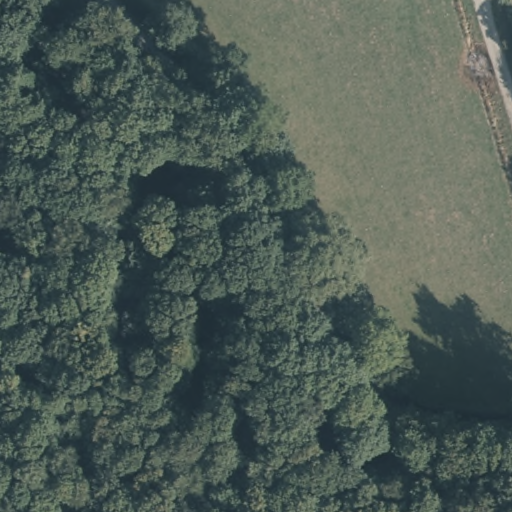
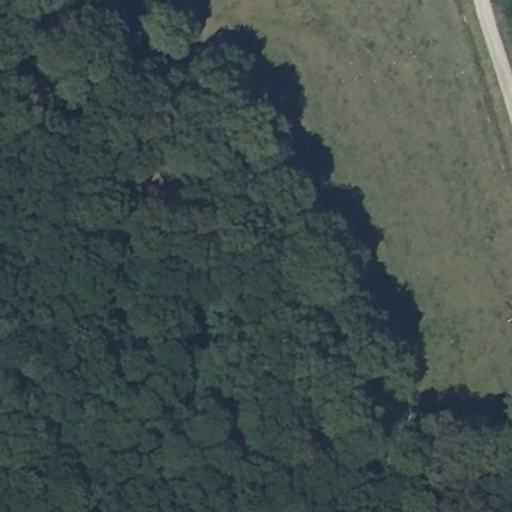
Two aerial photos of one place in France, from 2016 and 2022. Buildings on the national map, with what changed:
[]

